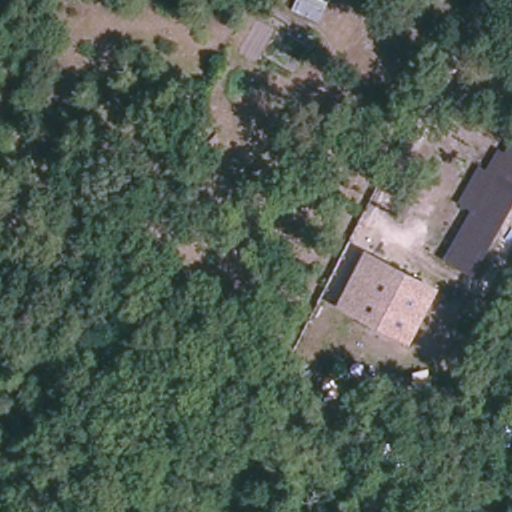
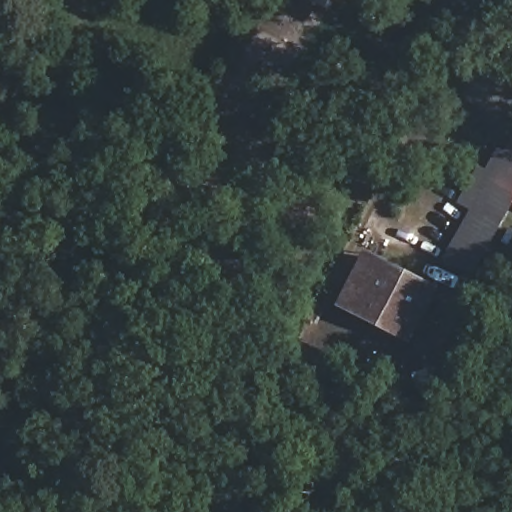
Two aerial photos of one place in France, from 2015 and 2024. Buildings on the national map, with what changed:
unchanged [(475,278),(447,259),(509,142),(512,144),(512,217),(475,278)]
unchanged [(373,257),(432,287),(405,339),(347,310),(373,257)]

